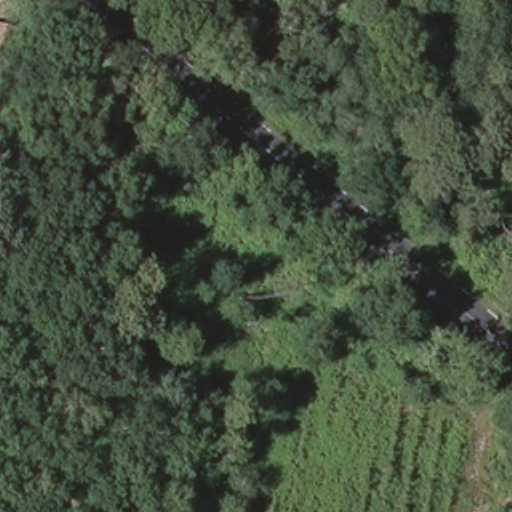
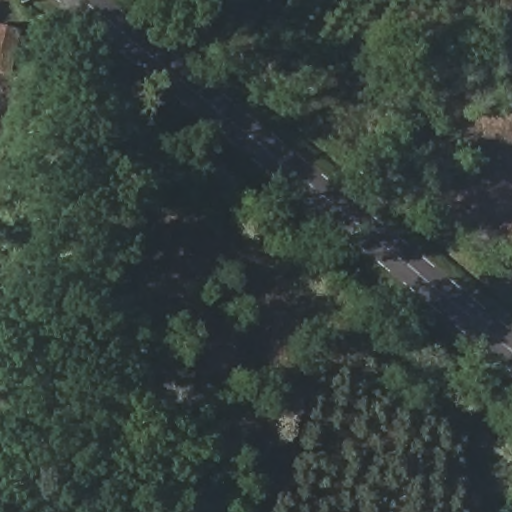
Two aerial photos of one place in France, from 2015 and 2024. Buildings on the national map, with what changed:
unchanged [(0,27),(11,30),(1,68),(0,68),(0,27)]

